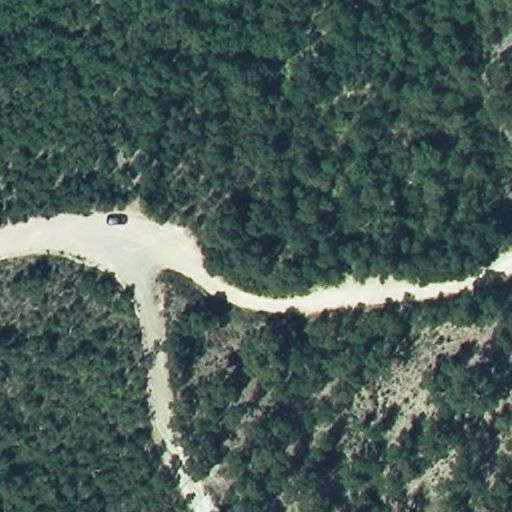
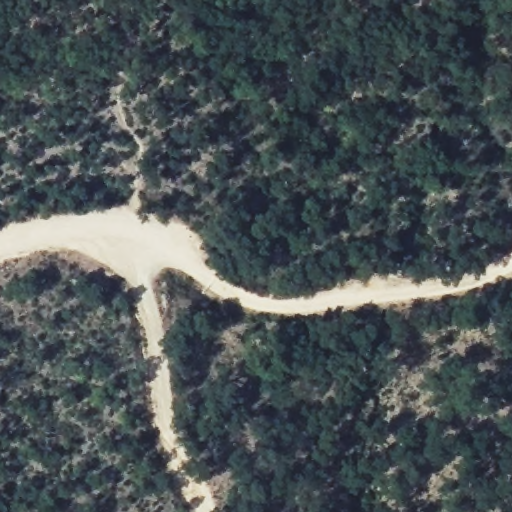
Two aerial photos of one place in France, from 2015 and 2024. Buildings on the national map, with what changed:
[]

